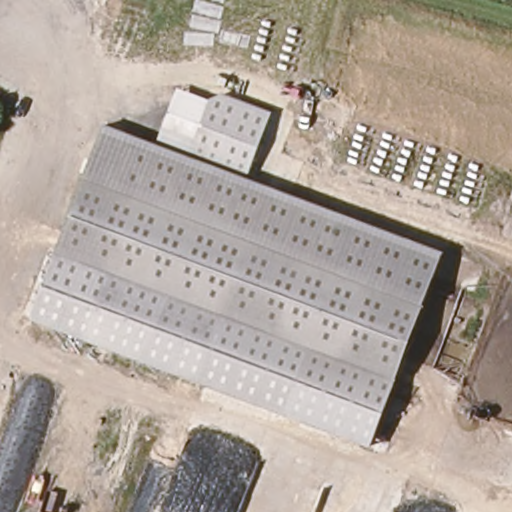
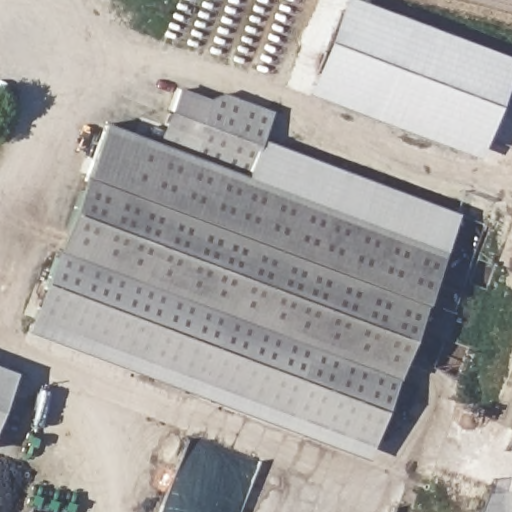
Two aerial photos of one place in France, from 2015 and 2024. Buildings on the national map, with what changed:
new [(360,0),(512,58),(512,70),(477,159),(305,94),(343,0),(360,0)]
unchanged [(196,136),(165,125),(179,88),(210,98),(196,136)]
unchanged [(165,125),(196,136),(210,98),(221,93),(270,112),(260,138),(246,175),(158,141),(165,125)]
unchanged [(158,141),(246,175),(445,252),(396,374),(313,341),(60,242),(109,122),(158,141)]
new [(260,138),(459,213),(445,252),(246,175),(260,138)]
unchanged [(396,374),(371,453),(32,320),(60,242),(396,374)]
new [(0,413),(0,367),(15,373),(0,413)]

